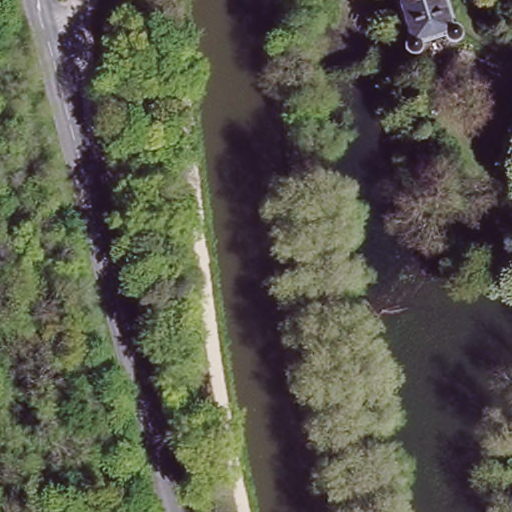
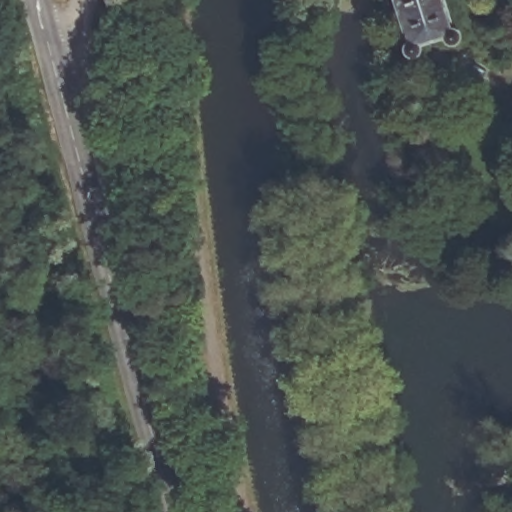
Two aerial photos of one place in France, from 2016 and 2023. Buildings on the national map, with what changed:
unchanged [(455,26),(459,27),(464,32),(463,40),(457,45),(450,44),(444,37),(422,44),(422,51),(416,56),(409,55),(404,50),(404,42),(409,38),(397,0),(446,0),(455,26)]

